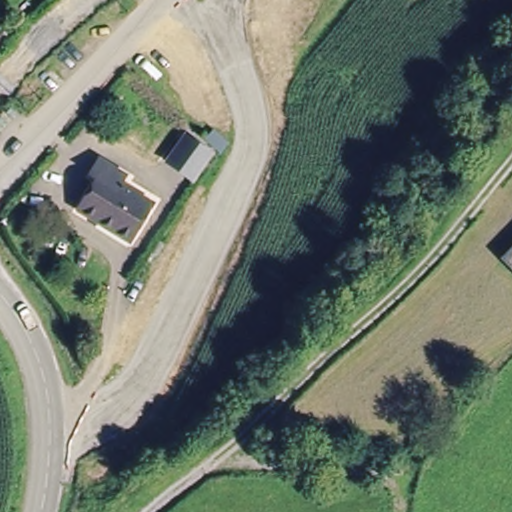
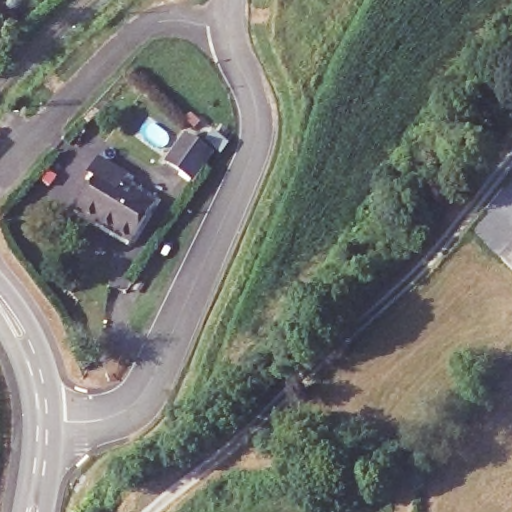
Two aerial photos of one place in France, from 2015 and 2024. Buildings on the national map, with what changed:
unchanged [(166,155),(186,133),(212,153),(195,179),(166,155)]
unchanged [(90,222),(71,208),(90,178),(83,173),(95,155),(121,174),(116,184),(149,207),(129,237),(124,245),(90,222)]
unchanged [(500,259),(512,246),(512,270),(500,259)]

